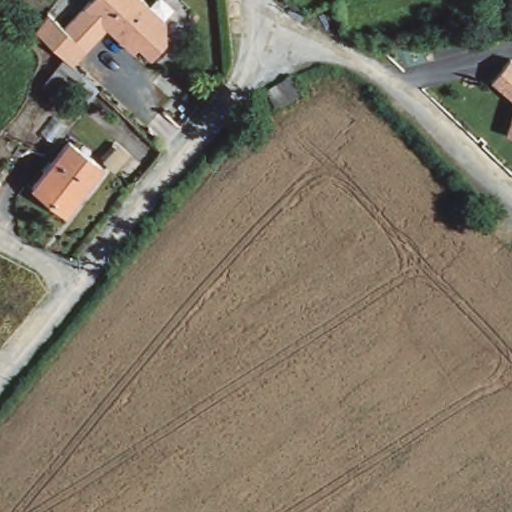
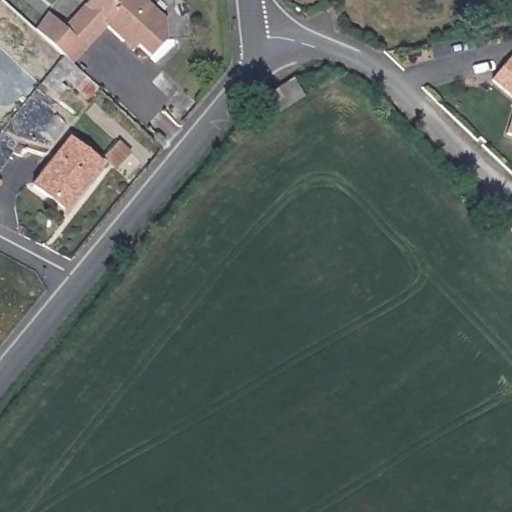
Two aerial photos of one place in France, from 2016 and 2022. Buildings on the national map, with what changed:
unchanged [(164,17),(167,36),(150,55),(135,42),(122,42),(107,29),(85,52),(60,29),(86,0),(144,0),(164,17)]
unchanged [(85,75),(74,87),(66,81),(54,93),(43,84),(65,57),(85,75)]
unchanged [(496,140),(505,106),(480,81),(505,58),(512,64),(512,143),(496,140)]
unchanged [(290,81),(298,77),(310,96),(281,112),(270,93),(290,81)]
unchanged [(101,169),(65,216),(32,192),(71,145),(101,169)]

